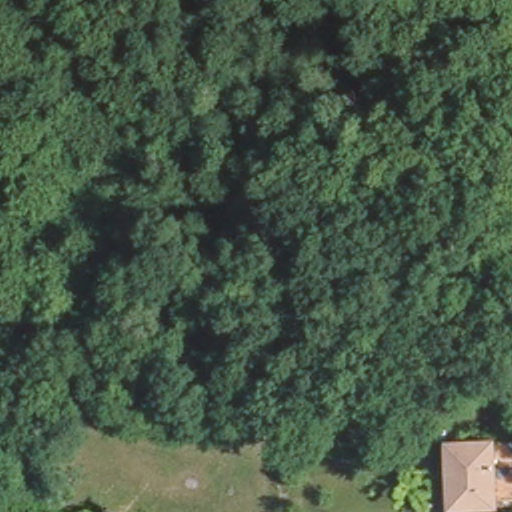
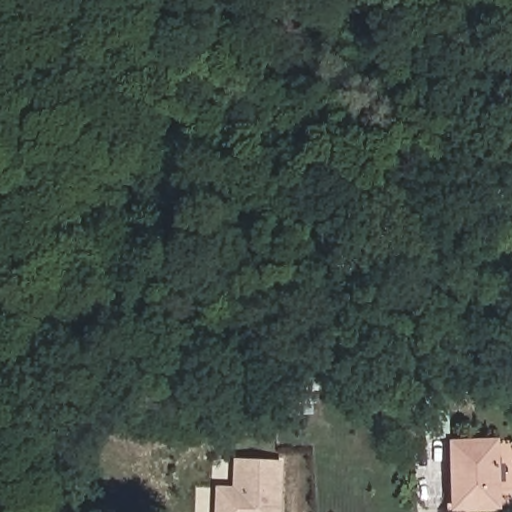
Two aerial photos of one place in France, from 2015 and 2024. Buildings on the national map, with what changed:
unchanged [(310,415),(281,417),(280,395),(309,394),(310,415)]
unchanged [(497,502),(452,503),(449,438),(494,436),(497,502)]
new [(215,487),(230,488),(231,459),(283,460),(281,512),(213,512),(215,487)]

